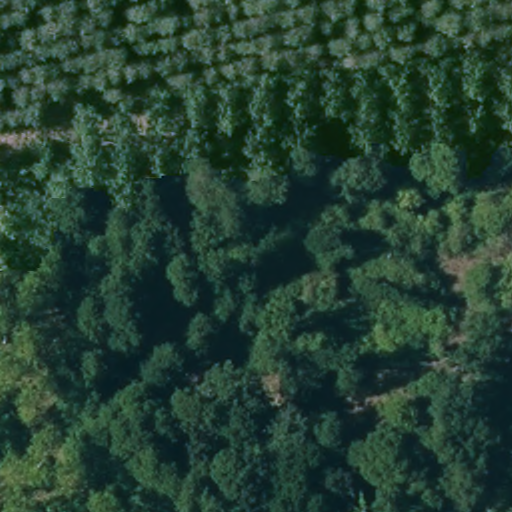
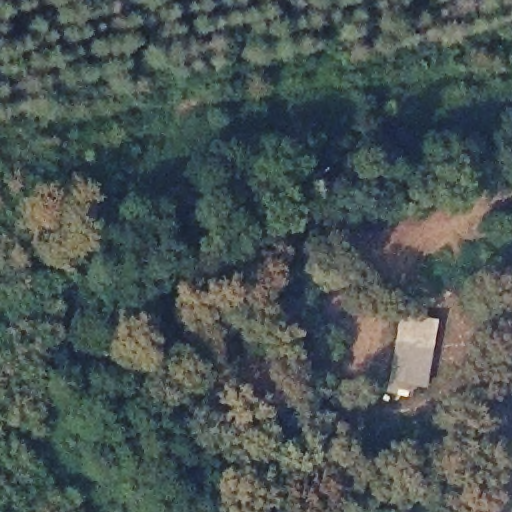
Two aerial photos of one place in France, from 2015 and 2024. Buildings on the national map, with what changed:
new [(397,312),(436,319),(426,388),(387,381),(397,312)]

